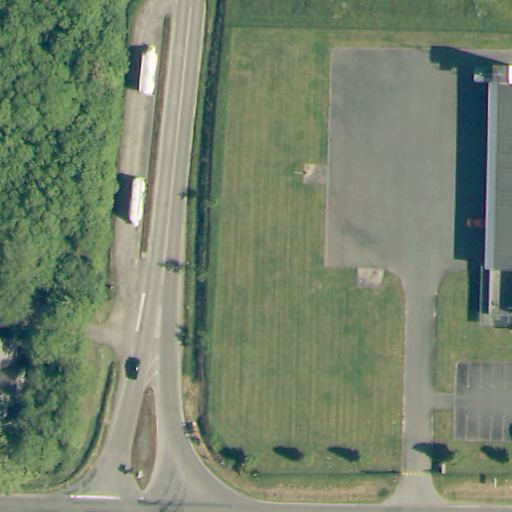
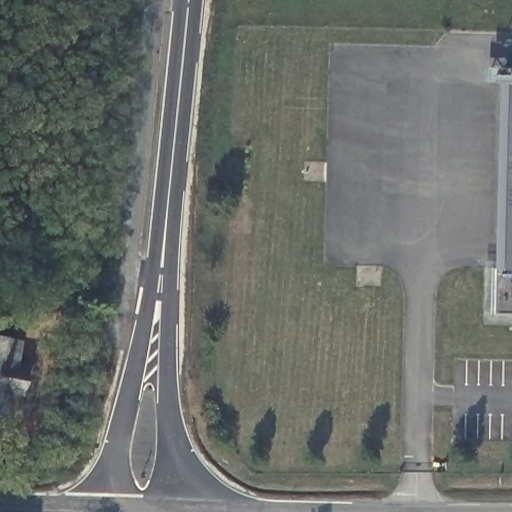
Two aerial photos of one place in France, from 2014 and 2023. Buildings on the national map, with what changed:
unchanged [(491,270),(496,81),(505,81),(505,66),(512,66),(512,317),(481,316),(482,269),(491,270)]
unchanged [(12,364),(25,366),(20,395),(7,393),(2,415),(0,415),(0,336),(17,340),(12,364)]

